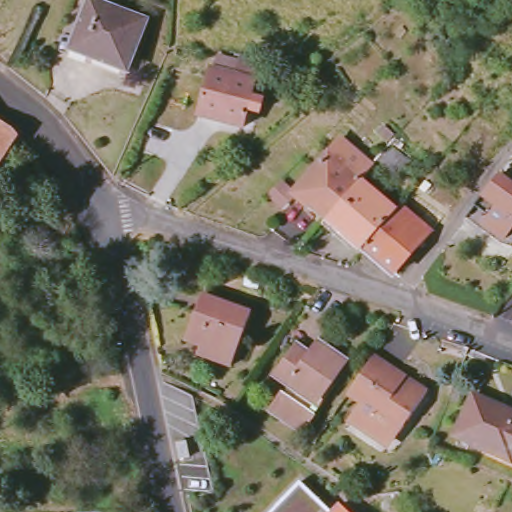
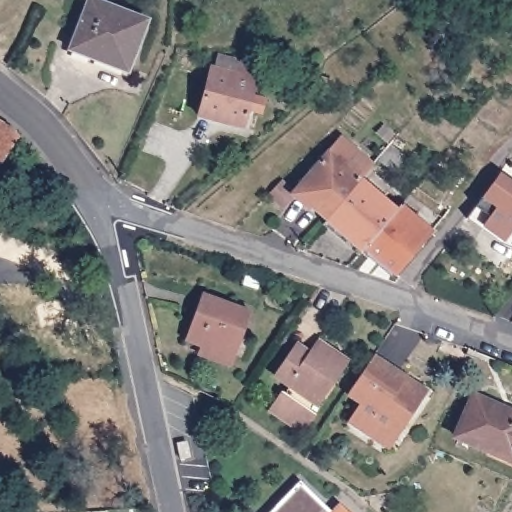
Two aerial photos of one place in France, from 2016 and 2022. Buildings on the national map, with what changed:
unchanged [(92,55),(91,58),(70,50),(89,0),(96,0),(147,20),(128,69),(92,55)]
unchanged [(245,96),(256,99),(252,111),(241,109),(237,125),(194,115),(205,70),(209,70),(213,53),(235,59),(236,54),(255,58),(245,96)]
unchanged [(317,75),(305,72),(309,56),(321,60),(317,75)]
unchanged [(157,100),(166,66),(196,75),(188,109),(157,100)]
unchanged [(7,124),(24,144),(48,176),(37,190),(2,150),(0,153),(0,119),(7,124)]
unchanged [(386,148),(406,165),(395,179),(374,162),(386,148)]
unchanged [(355,185),(321,225),(289,198),(323,157),(341,171),(355,155),(370,167),(355,185)]
unchanged [(483,225),(489,217),(474,206),(487,187),(497,174),(512,185),(512,228),(503,240),(483,225)]
unchanged [(359,252),(356,255),(321,225),(355,185),(390,215),(359,252)]
unchanged [(390,215),(396,209),(425,235),(390,278),(359,252),(390,215)]
unchanged [(205,355),(208,348),(185,340),(202,294),(251,312),(231,365),(205,355)]
unchanged [(270,411),(283,393),(291,398),(296,390),(288,385),(292,380),(280,371),(298,345),(311,355),(320,342),(339,356),(334,363),(343,370),(313,413),(316,416),(303,432),(270,411)]
unchanged [(401,431),(397,430),(392,437),(380,440),(348,419),(360,401),(347,392),(350,387),(372,354),(406,376),(419,384),(427,390),(401,431)]
unchanged [(473,395),(512,412),(512,462),(455,437),(473,395)]
unchanged [(177,443),(186,441),(190,457),(180,460),(177,443)]
unchanged [(333,512),(271,512),(301,481),(333,512)]
unchanged [(349,512),(335,512),(342,505),(349,512)]

